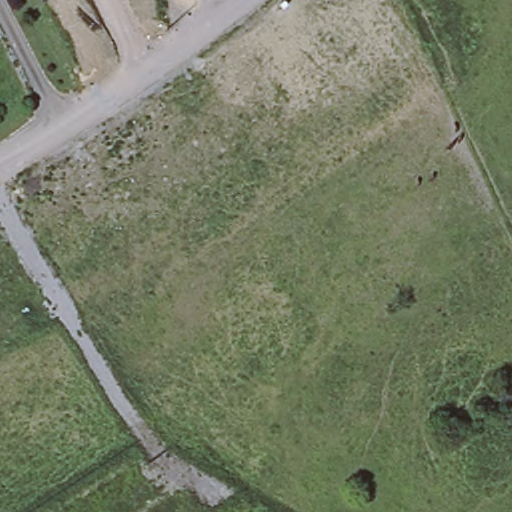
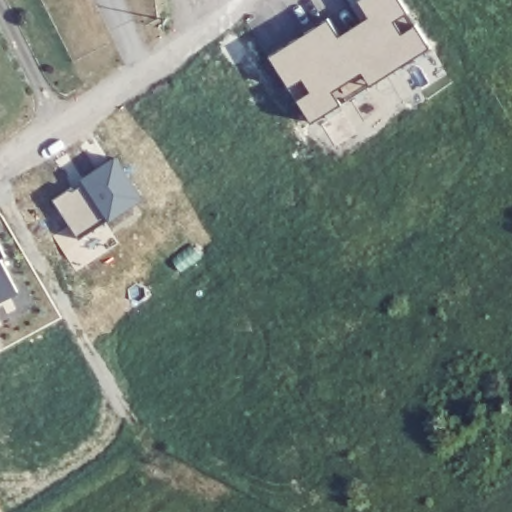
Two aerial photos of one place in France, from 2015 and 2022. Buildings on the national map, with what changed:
new [(270,57),(330,19),(340,35),(367,16),(357,0),(358,0),(401,0),(430,47),(311,122),(270,57)]
new [(70,189),(72,192),(84,184),(82,181),(114,160),(140,201),(77,241),(50,201),(70,189)]
new [(0,258),(0,248),(4,256),(0,258)]
new [(0,299),(0,258),(16,291),(0,299)]

